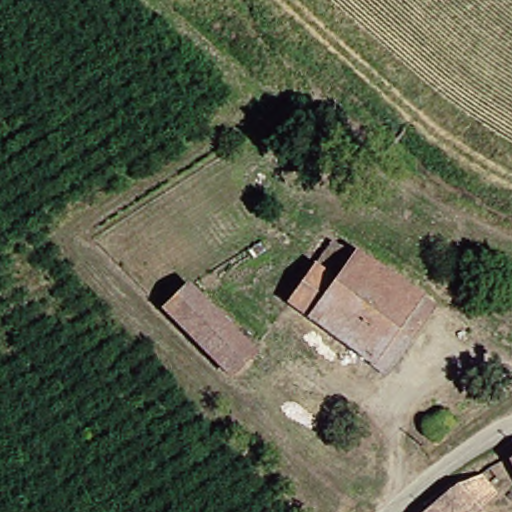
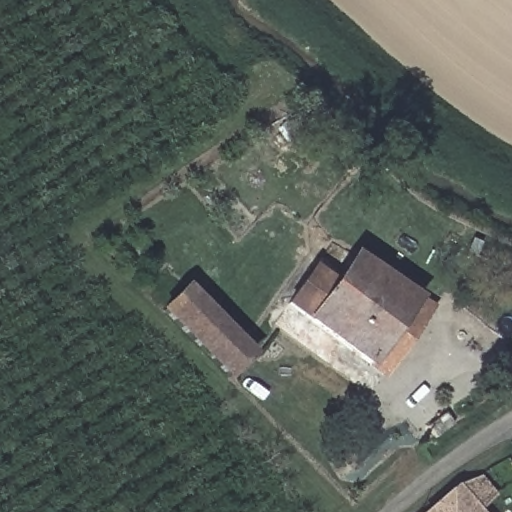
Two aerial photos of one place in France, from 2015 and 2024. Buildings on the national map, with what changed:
unchanged [(279,303),(324,242),(403,291),(355,357),(279,303)]
unchanged [(177,287),(242,350),(218,374),(154,310),(177,287)]
unchanged [(423,303),(374,370),(355,357),(403,291),(423,303)]
unchanged [(425,445),(414,432),(445,406),(457,419),(425,445)]
unchanged [(500,465),(512,458),(512,486),(500,465)]
unchanged [(450,484),(470,475),(478,485),(487,495),(472,510),(474,512),(415,512),(450,484)]

